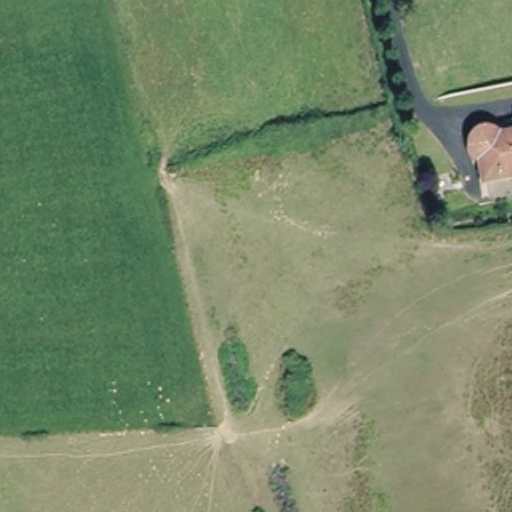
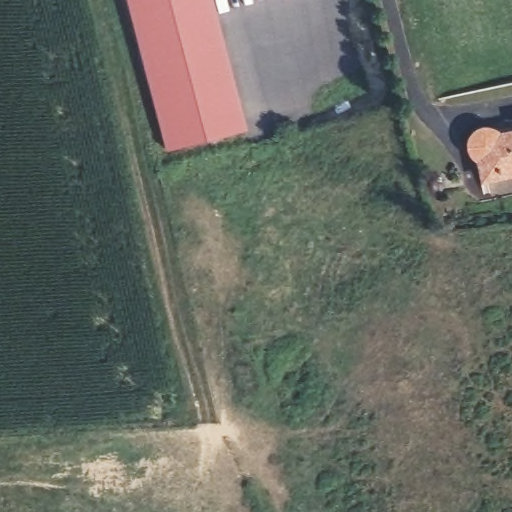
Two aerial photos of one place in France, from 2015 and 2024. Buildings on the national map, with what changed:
new [(127,0),(214,0),(247,129),(167,151),(127,0)]
unchanged [(488,174),(485,175),(481,176),(476,176),(473,176),(468,174),(464,172),(460,169),(457,166),(454,162),(452,159),(451,154),(451,151),(451,147),(451,144),(452,140),(453,137),(455,134),(456,132),(458,130),(461,127),(465,125),(468,123),(471,122),(475,122),(481,122),(485,122),(487,123),(490,124),(493,126),(495,128),(498,130),(500,134),(502,136),(503,138),(504,141),(512,140),(512,183),(490,187),(488,174)]

